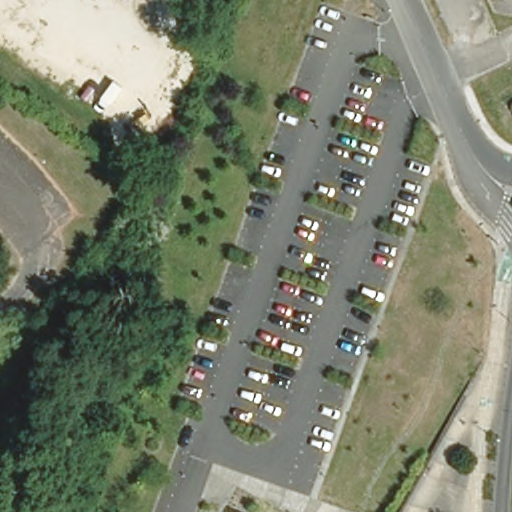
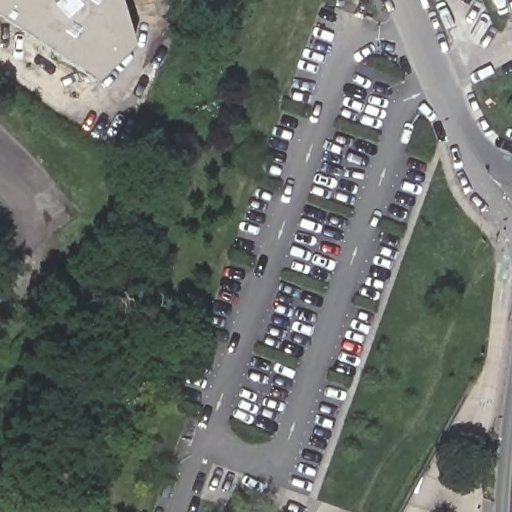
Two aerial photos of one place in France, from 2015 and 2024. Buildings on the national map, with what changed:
new [(141,44),(105,79),(0,8),(0,0),(130,0),(141,44)]

